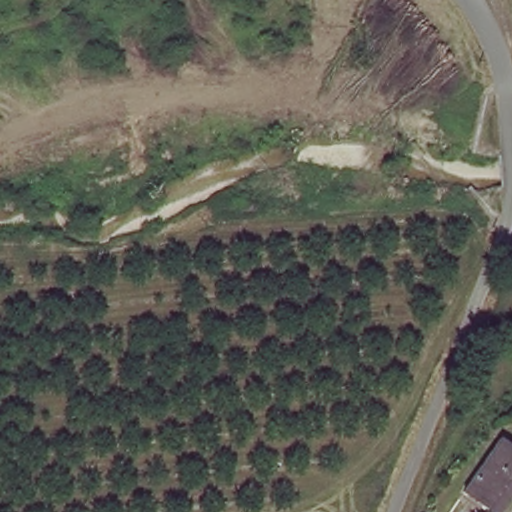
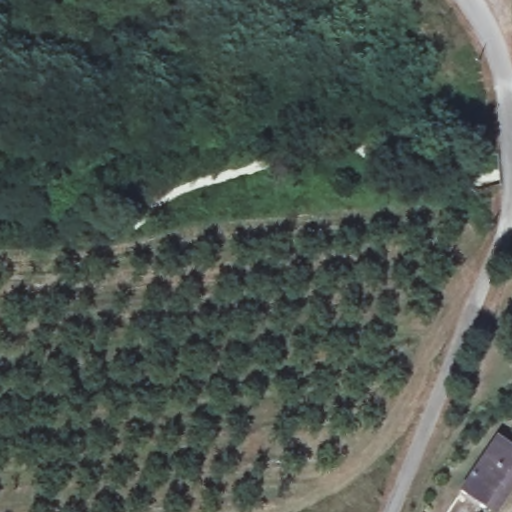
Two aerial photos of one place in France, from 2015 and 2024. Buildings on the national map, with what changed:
unchanged [(486,507),(462,490),(500,438),(512,446),(512,475),(510,474),(486,507)]

